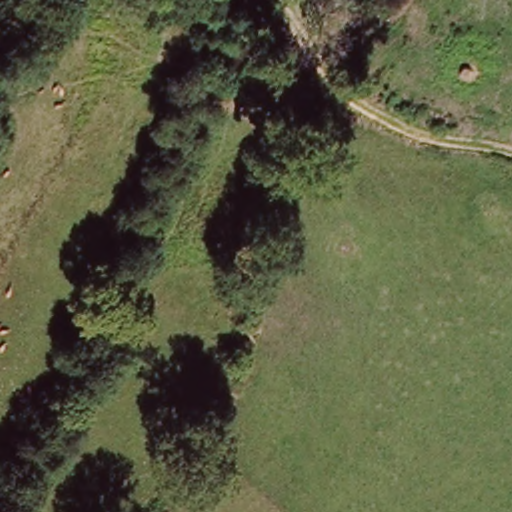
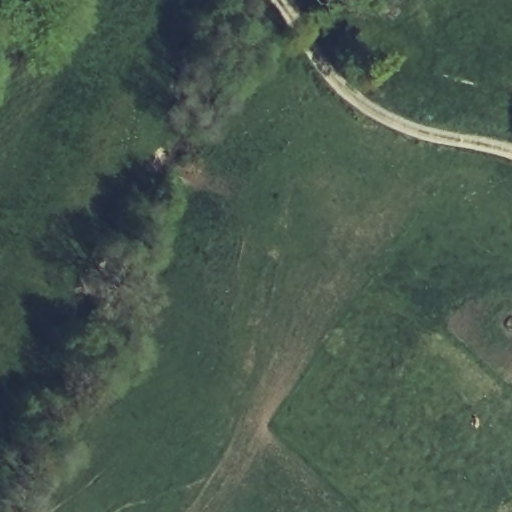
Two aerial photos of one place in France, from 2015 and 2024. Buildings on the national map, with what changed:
[]

